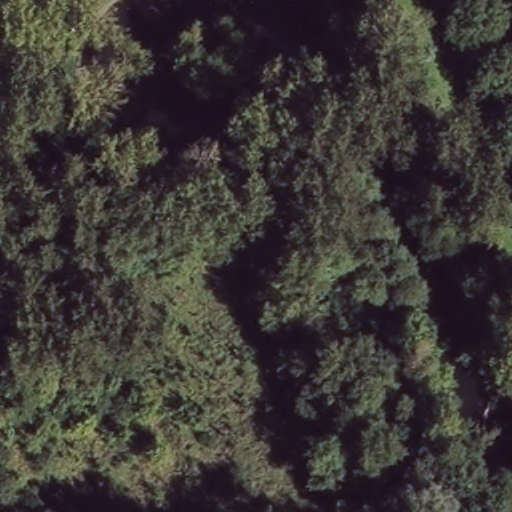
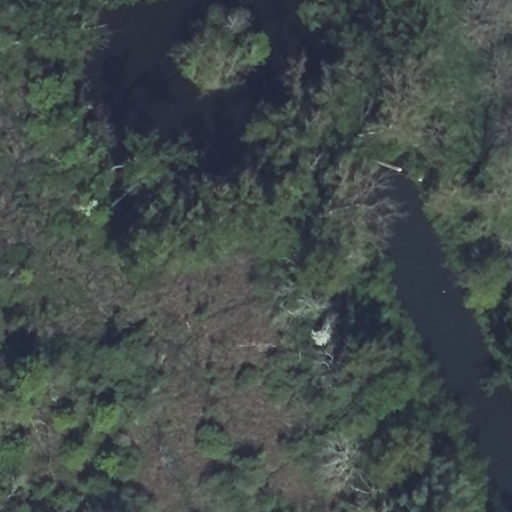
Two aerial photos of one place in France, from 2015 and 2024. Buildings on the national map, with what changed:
unchanged [(197,51),(204,69),(184,76),(177,58),(197,51)]

